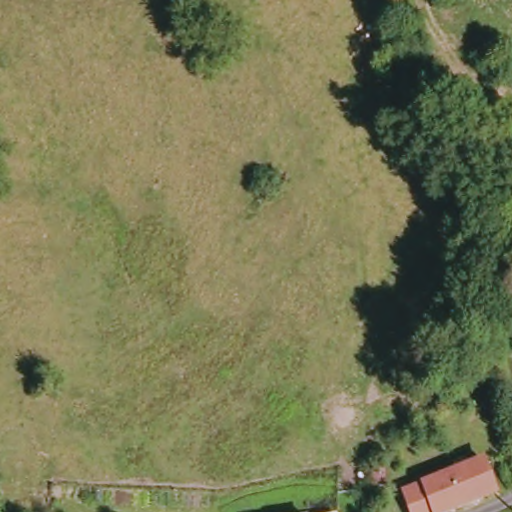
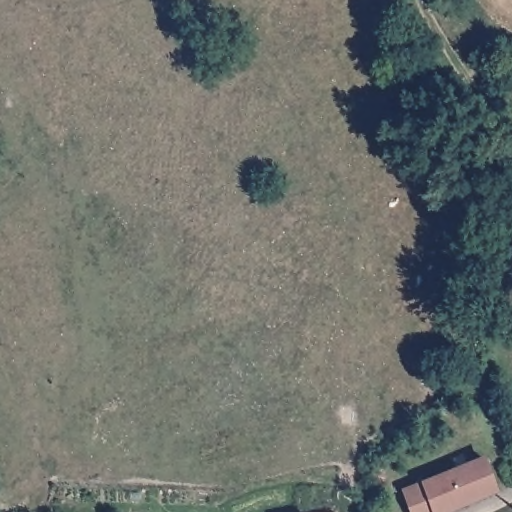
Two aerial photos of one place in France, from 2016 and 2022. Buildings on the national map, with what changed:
unchanged [(454,512),(416,512),(410,493),(488,461),(502,493),(454,512)]
unchanged [(343,510),(343,512),(337,512),(343,510)]

